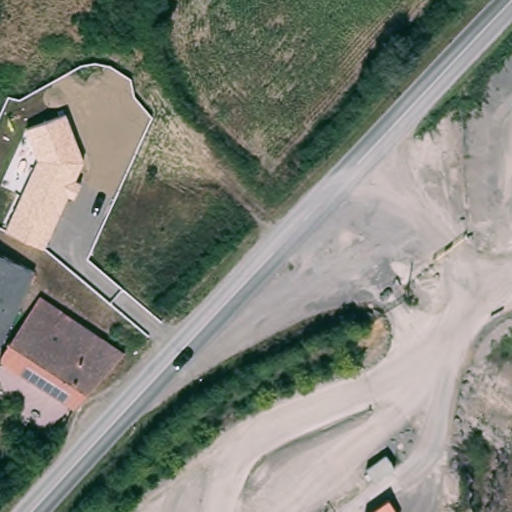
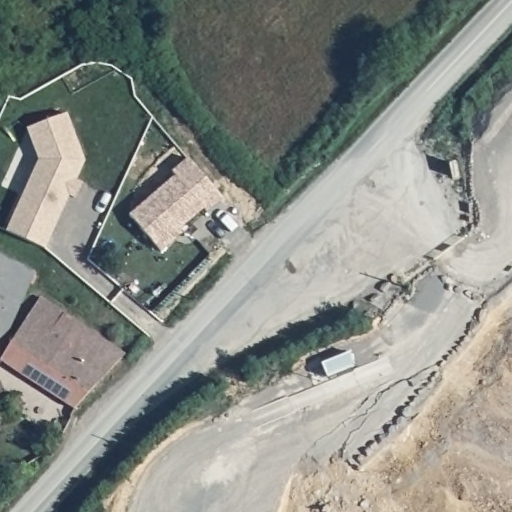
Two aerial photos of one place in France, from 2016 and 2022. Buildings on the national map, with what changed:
unchanged [(37,157),(27,130),(66,114),(84,161),(76,181),(81,182),(74,199),(68,197),(44,249),(5,231),(37,157)]
new [(176,238),(161,251),(130,214),(176,175),(172,171),(189,157),(223,197),(207,211),(204,207),(179,229),(181,233),(176,238)]
unchanged [(35,276),(0,351),(0,260),(35,276)]
unchanged [(125,358),(74,413),(0,364),(0,363),(40,301),(125,358)]

